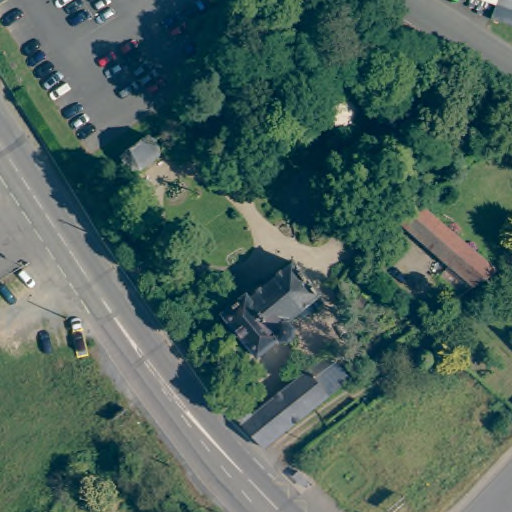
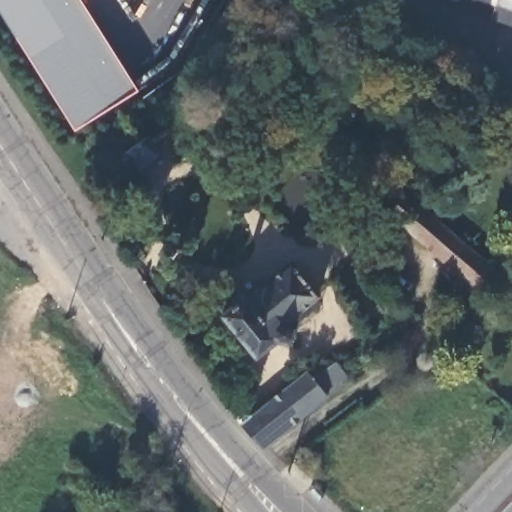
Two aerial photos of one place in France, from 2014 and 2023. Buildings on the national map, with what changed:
new [(139,91),(74,130),(0,12),(0,0),(81,0),(139,91)]
unchanged [(496,7),(477,0),(498,0),(496,7)]
unchanged [(155,152),(155,158),(135,172),(129,172),(119,159),(146,139),(155,152)]
unchanged [(436,273),(443,264),(398,224),(388,215),(406,196),(490,270),(467,285),(457,293),(436,273)]
unchanged [(254,358),(220,317),(243,297),(247,302),(291,265),(317,297),(316,298),(321,307),(299,325),(293,318),(286,325),(292,332),(291,340),(284,345),(279,343),(276,341),(254,358)]
unchanged [(351,375),(338,385),(335,380),(330,361),(337,357),(351,375)]
unchanged [(256,412),(312,369),(318,378),(325,374),(332,383),(327,387),(332,394),(266,445),(250,427),(245,421),(234,406),(245,398),(256,412)]

